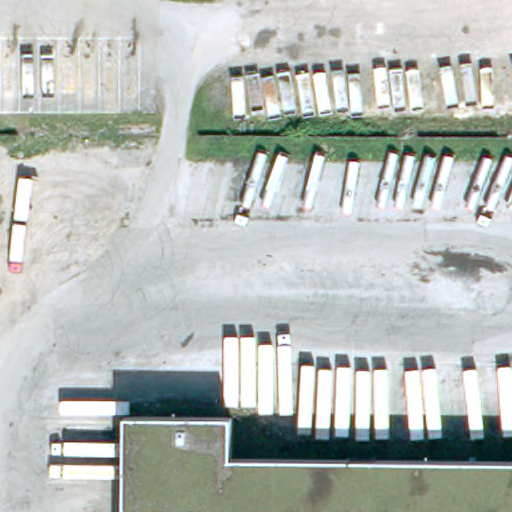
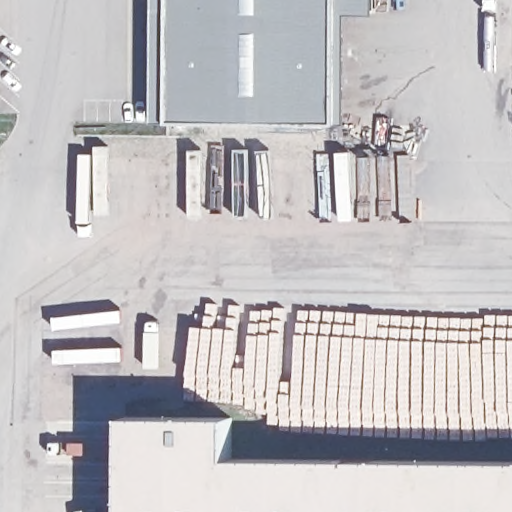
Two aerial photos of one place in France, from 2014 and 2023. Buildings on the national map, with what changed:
new [(154,122),(155,0),(375,0),(375,15),(347,15),(346,124),(154,122)]
unchanged [(233,413),(232,453),(512,456),(512,512),(126,512),(127,412),(233,413)]

